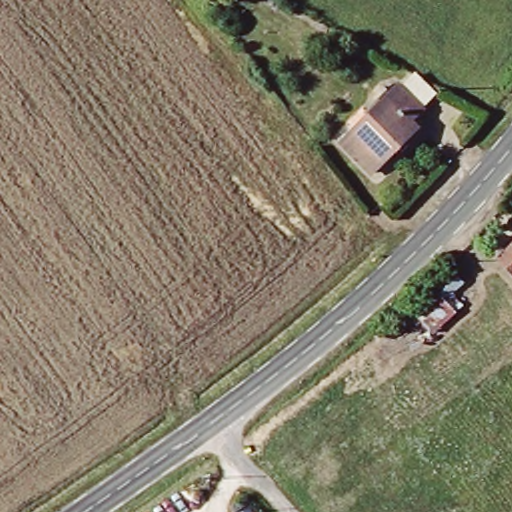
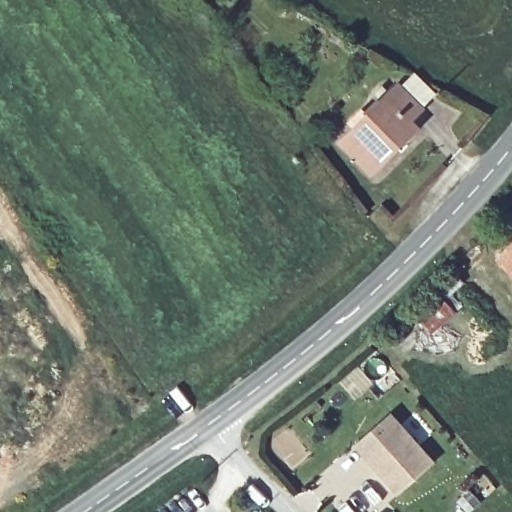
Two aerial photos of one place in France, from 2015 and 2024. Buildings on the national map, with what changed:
unchanged [(413,117),(418,122),(368,174),(334,138),(394,76),(423,104),(413,117)]
unchanged [(495,254),(512,239),(512,272),(495,254)]
unchanged [(471,293),(429,332),(404,308),(451,268),(471,293)]
new [(398,494),(354,444),(392,411),(406,426),(415,417),(429,434),(419,441),(436,461),(398,494)]

